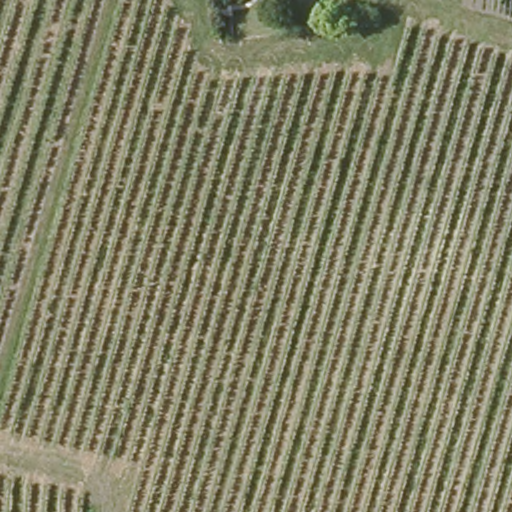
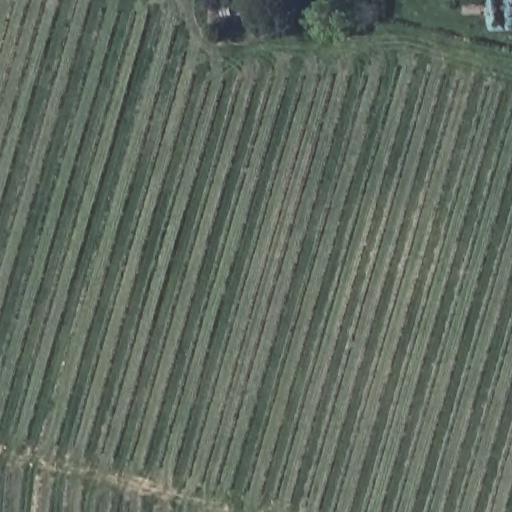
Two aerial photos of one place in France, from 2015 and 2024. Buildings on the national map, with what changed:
[]

